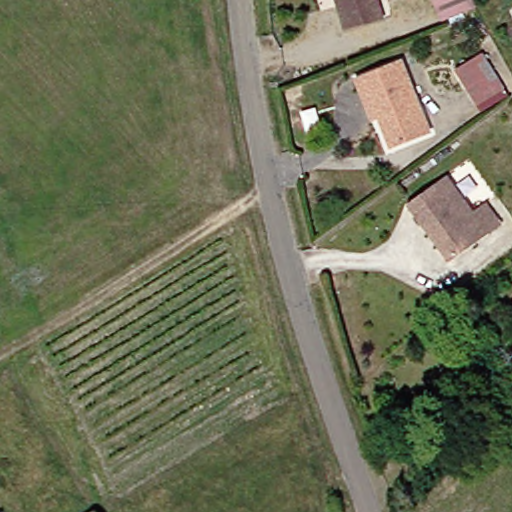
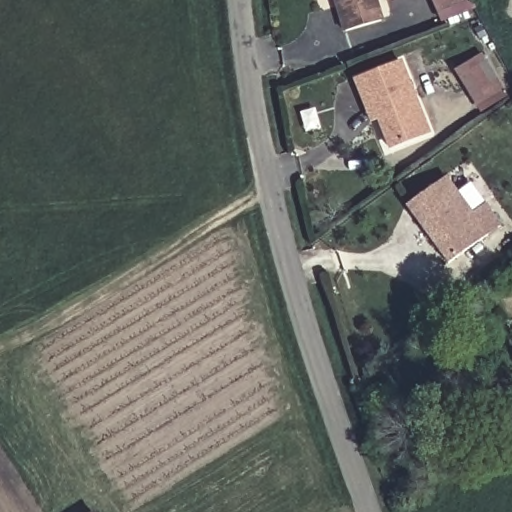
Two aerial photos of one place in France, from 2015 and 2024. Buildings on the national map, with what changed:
unchanged [(355,29),(344,2),(344,0),(387,0),(392,14),(355,29)]
unchanged [(470,0),(443,11),(439,0),(470,0)]
unchanged [(507,89),(478,103),(459,66),(488,52),(507,89)]
unchanged [(367,95),(361,76),(407,59),(436,130),(396,145),(384,115),(376,118),(367,95)]
unchanged [(473,212),(484,203),(501,226),(449,263),(407,205),(445,176),(473,212)]

